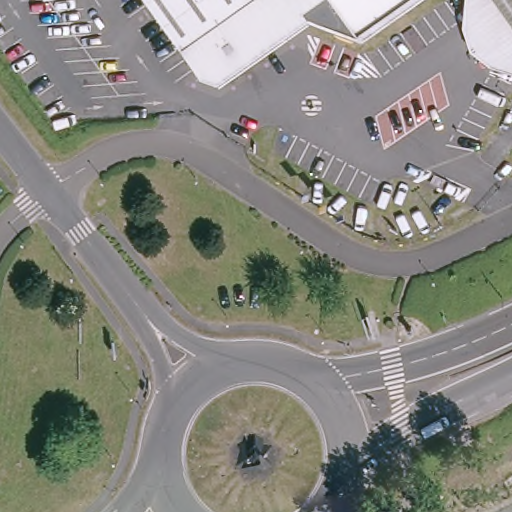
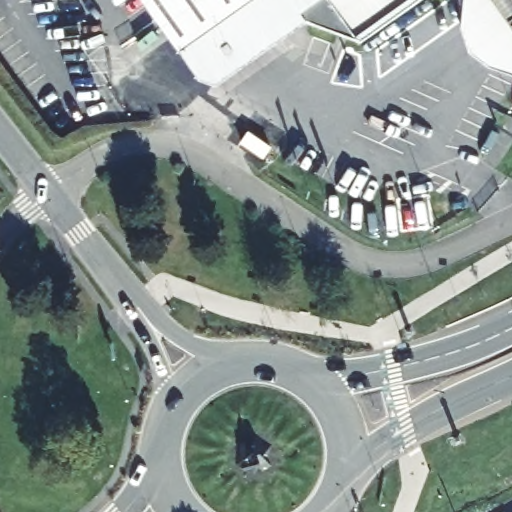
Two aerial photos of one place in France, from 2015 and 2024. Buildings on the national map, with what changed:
unchanged [(365,29),(308,19),(217,83),(198,73),(178,45),(146,0),(406,0),(365,29)]
unchanged [(486,60),(467,45),(459,20),(460,0),(512,0),(512,68),(486,60)]

